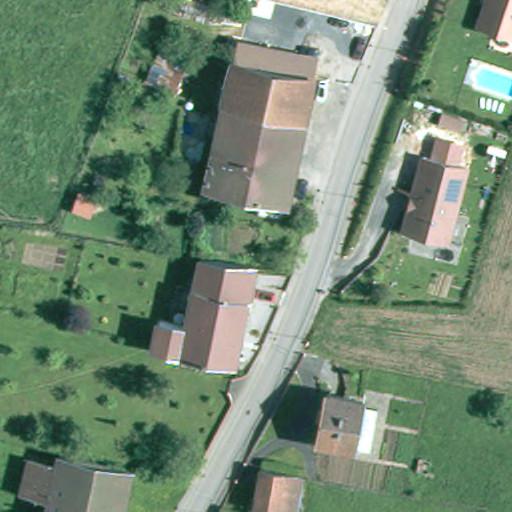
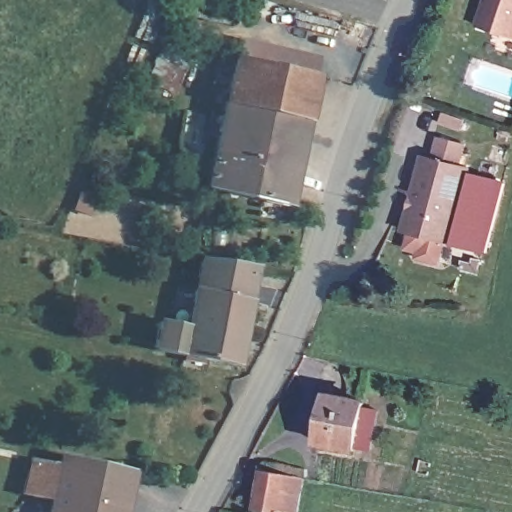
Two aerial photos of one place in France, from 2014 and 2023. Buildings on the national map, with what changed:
unchanged [(478,26),(486,0),(512,0),(512,37),(478,26)]
unchanged [(283,204),(203,187),(215,131),(228,75),(233,57),(312,75),(283,204)]
unchanged [(448,245),(409,235),(406,229),(411,213),(414,211),(417,199),(414,197),(424,159),(429,160),(434,140),(468,150),(462,170),(466,171),(448,245)]
new [(504,181),(486,254),(448,245),(466,171),(504,181)]
unchanged [(153,347),(158,315),(186,320),(198,252),(254,262),(235,361),(206,356),(153,347)]
unchanged [(311,438),(319,390),(351,397),(350,402),(365,406),(358,446),(356,446),(343,443),(342,445),(311,438)]
unchanged [(24,492),(31,456),(58,462),(60,452),(131,467),(122,512),(48,512),(51,497),(24,492)]
unchanged [(259,465),(301,473),(294,512),(280,512),(251,507),(259,465)]

